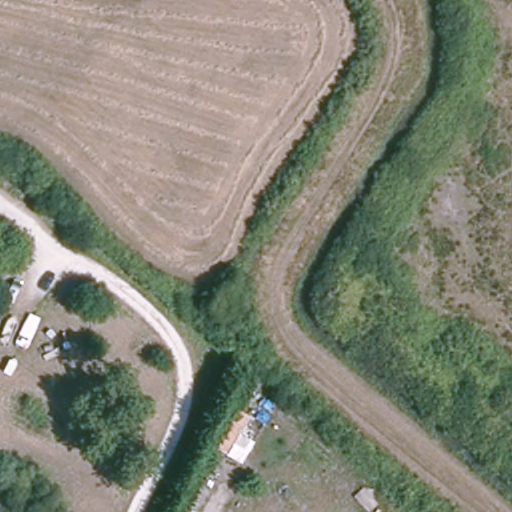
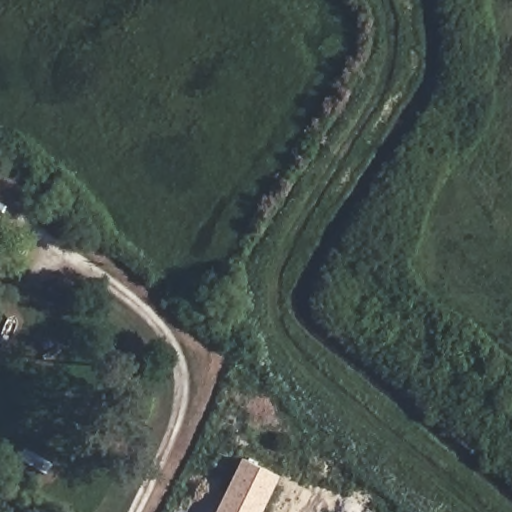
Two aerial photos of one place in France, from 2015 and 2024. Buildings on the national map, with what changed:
new [(243,459),(280,477),(264,512),(218,512),(243,459)]

